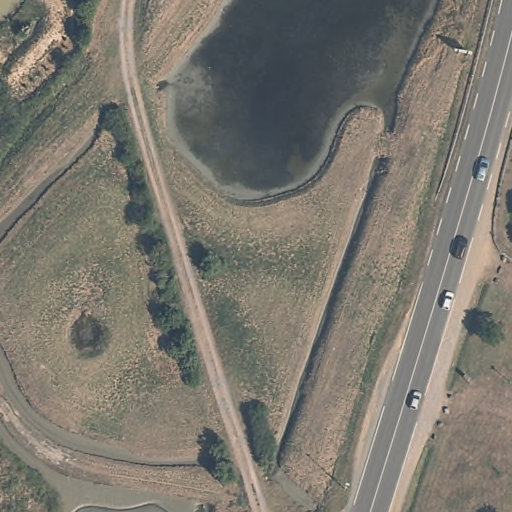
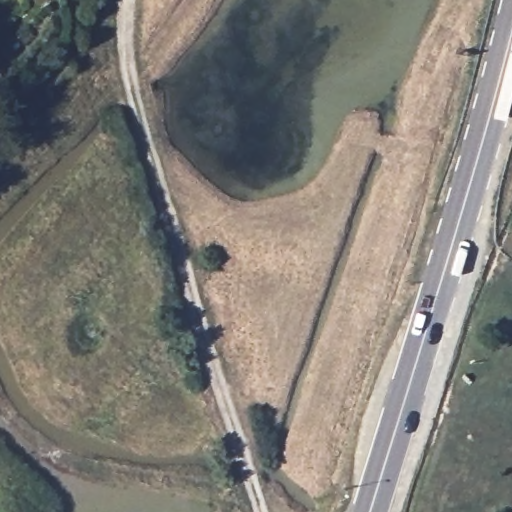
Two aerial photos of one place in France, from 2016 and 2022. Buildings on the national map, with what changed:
[]

